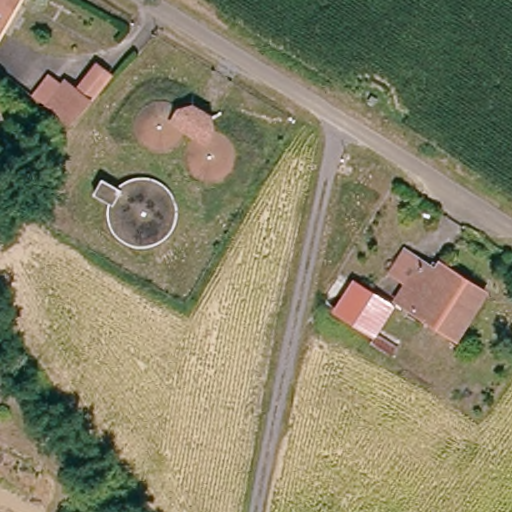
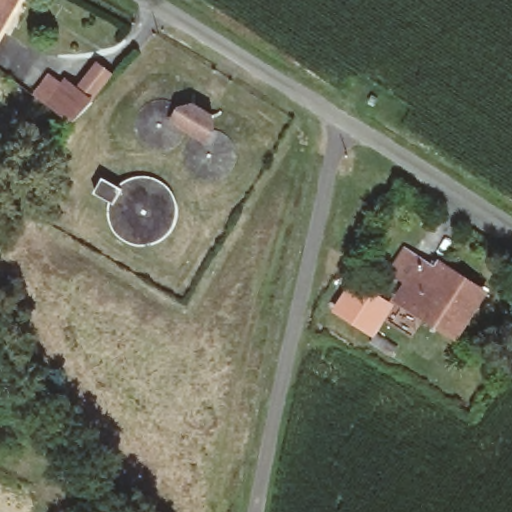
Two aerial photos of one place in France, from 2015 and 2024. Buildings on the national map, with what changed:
unchanged [(0,27),(0,0),(19,0),(0,27)]
unchanged [(49,110),(35,98),(55,79),(65,90),(71,85),(95,107),(74,129),(49,110)]
unchanged [(456,337),(422,315),(415,325),(397,313),(403,303),(396,298),(418,265),(430,272),(439,258),(467,276),(486,290),(456,337)]
unchanged [(358,285),(387,304),(372,331),(341,313),(358,285)]

